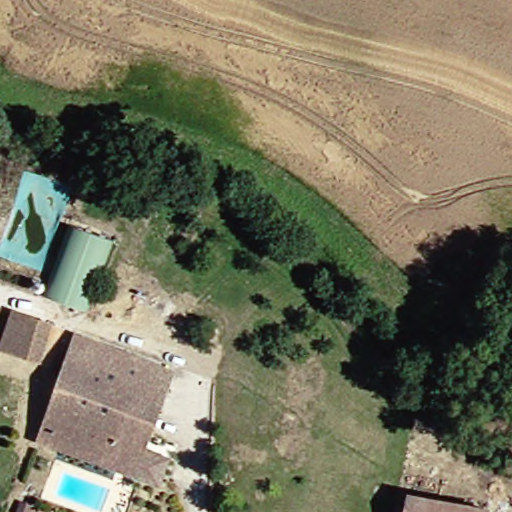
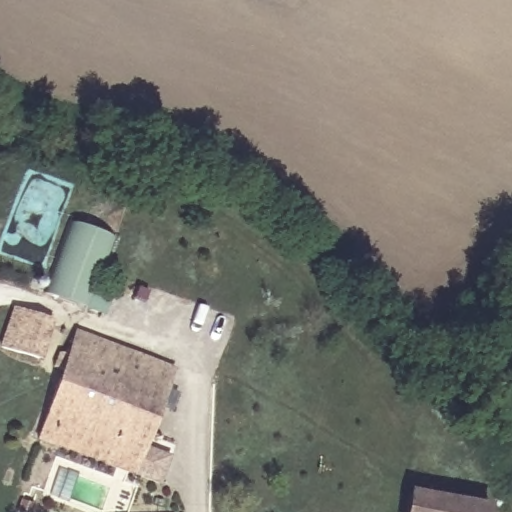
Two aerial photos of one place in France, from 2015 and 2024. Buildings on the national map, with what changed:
unchanged [(70,213),(116,230),(90,307),(43,294),(70,213)]
unchanged [(37,360),(0,348),(0,337),(9,306),(49,318),(37,360)]
unchanged [(160,487),(133,477),(65,452),(40,443),(62,375),(54,371),(70,332),(172,367),(145,447),(172,456),(160,487)]
unchanged [(400,512),(404,494),(479,506),(478,512),(400,512)]

